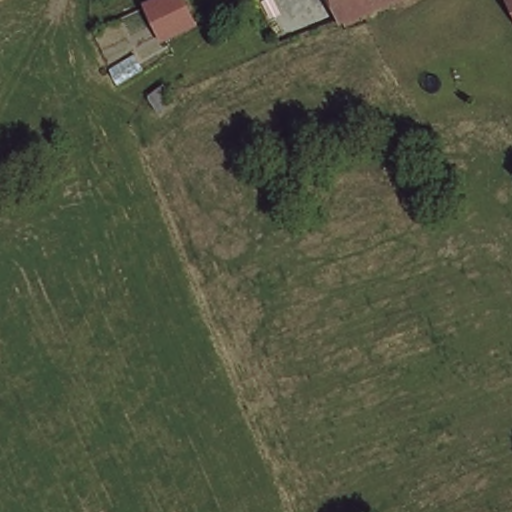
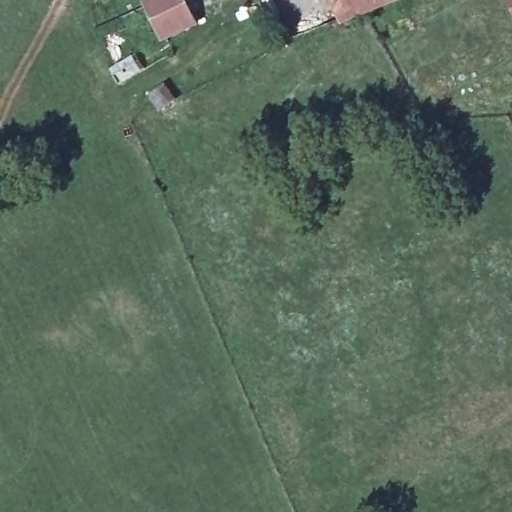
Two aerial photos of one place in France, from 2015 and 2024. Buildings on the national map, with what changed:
unchanged [(165,36),(148,3),(155,0),(189,0),(197,21),(165,36)]
unchanged [(335,19),(327,0),(344,0),(350,13),(335,19)]
unchanged [(350,13),(344,0),(388,0),(352,16),(350,13)]

